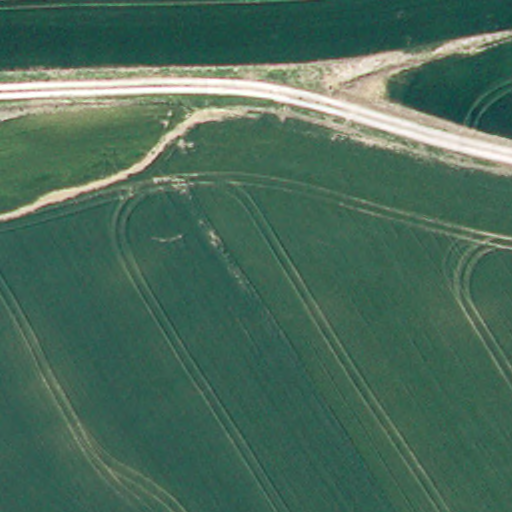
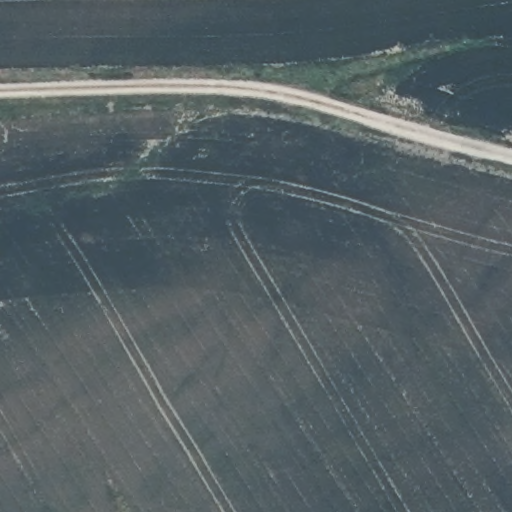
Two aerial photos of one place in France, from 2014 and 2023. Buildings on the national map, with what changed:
[]

